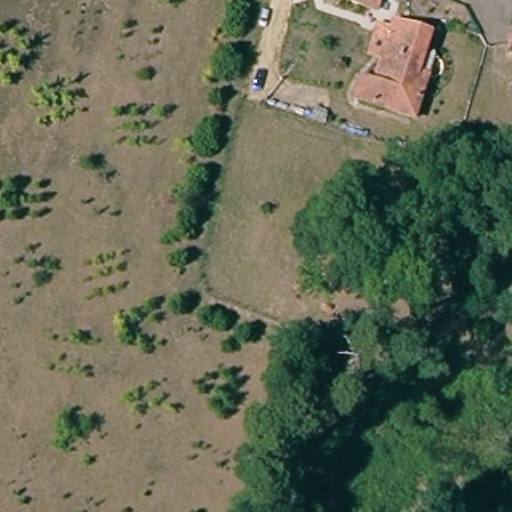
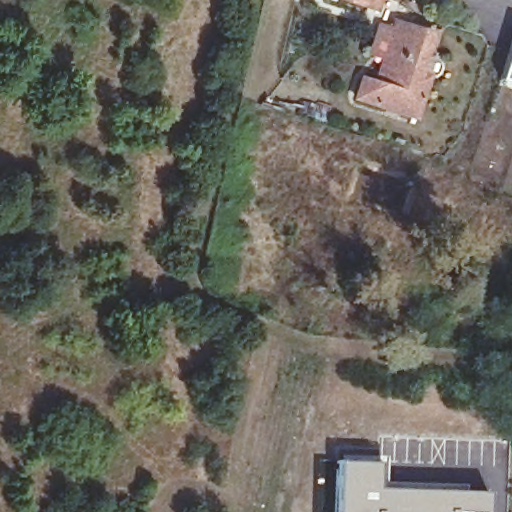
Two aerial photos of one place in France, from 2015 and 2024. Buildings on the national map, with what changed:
unchanged [(342,0),(384,0),(380,13),(342,0)]
unchanged [(433,26),(421,64),(430,67),(418,107),(357,87),(364,67),(376,71),(384,46),(391,24),(387,22),(390,16),(394,17),(395,14),(433,26)]
demolished [(510,28),(512,28),(512,55),(502,52),(510,28)]
new [(500,79),(512,42),(512,82),(500,79)]
new [(378,460),(377,487),(489,489),(488,512),(335,512),(337,460),(378,460)]

